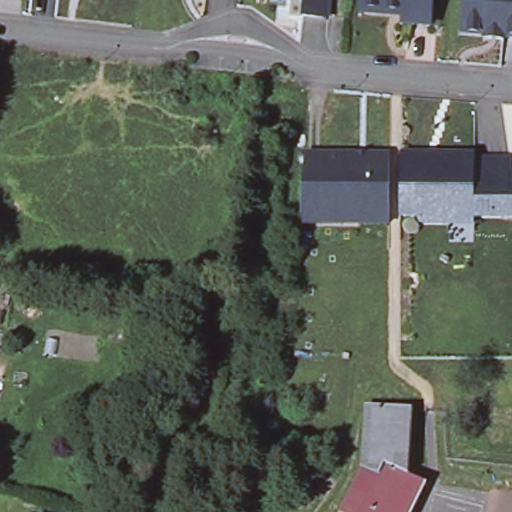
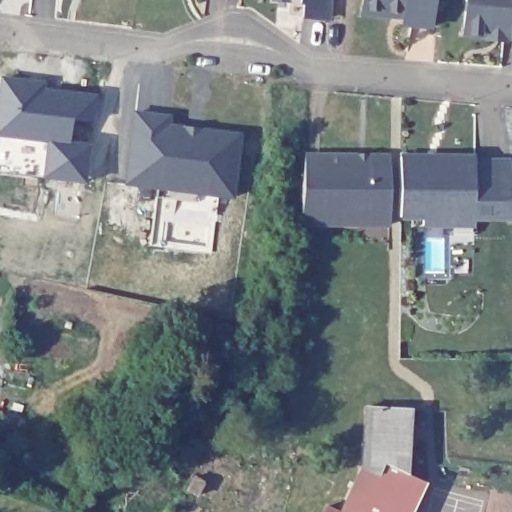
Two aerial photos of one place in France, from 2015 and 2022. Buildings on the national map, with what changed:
unchanged [(323,16),(299,14),(301,2),(299,0),(324,0),(323,16)]
unchanged [(403,14),(362,10),(363,0),(431,0),(429,25),(412,23),(403,22),(403,14)]
unchanged [(512,37),(500,36),(499,39),(483,38),(483,34),(462,32),(465,0),(512,0),(512,37)]
new [(1,79),(29,82),(28,90),(93,97),(89,120),(70,118),(68,144),(88,147),(82,182),(0,172),(0,90),(1,79)]
new [(133,112),(172,116),(171,126),(243,135),(236,198),(124,187),(133,112)]
unchanged [(329,216),(301,216),(306,148),(335,149),(364,149),(391,149),(391,168),(390,200),(389,217),(359,216),(329,216)]
unchanged [(475,150),(475,155),(511,155),(512,166),(512,211),(472,211),(473,206),(451,205),(451,217),(439,217),(422,217),(423,210),(399,209),(401,149),(436,150),(475,150)]
unchanged [(338,510),(348,489),(349,485),(360,463),(361,463),(363,445),(366,402),(397,405),(411,405),(409,448),(408,472),(424,480),(409,512),(344,512),(343,512),(338,510)]

